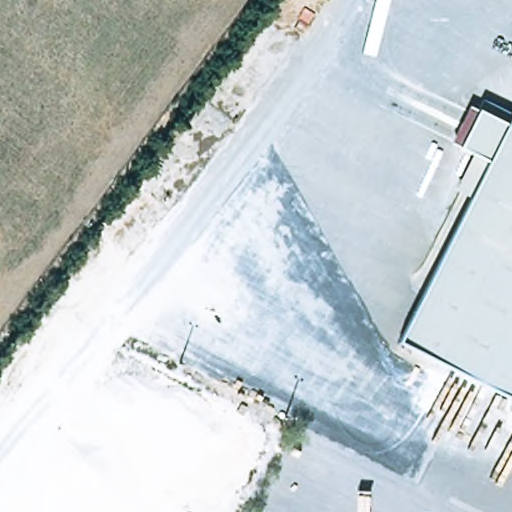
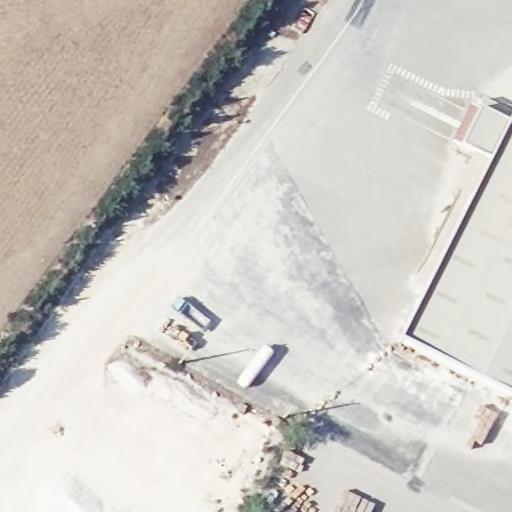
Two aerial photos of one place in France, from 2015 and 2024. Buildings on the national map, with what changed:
unchanged [(483,112),(511,126),(512,124),(512,403),(401,346),(491,165),(463,151),(483,112)]

